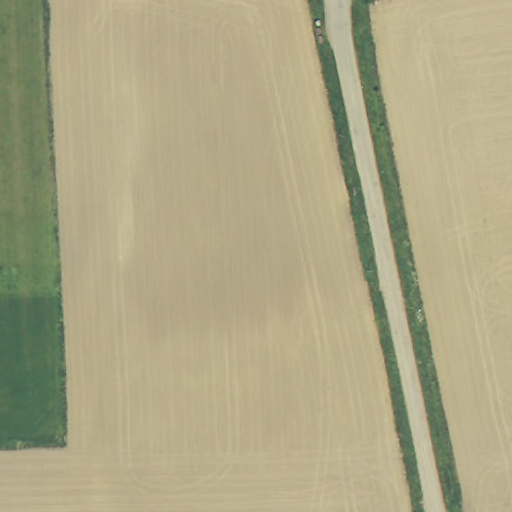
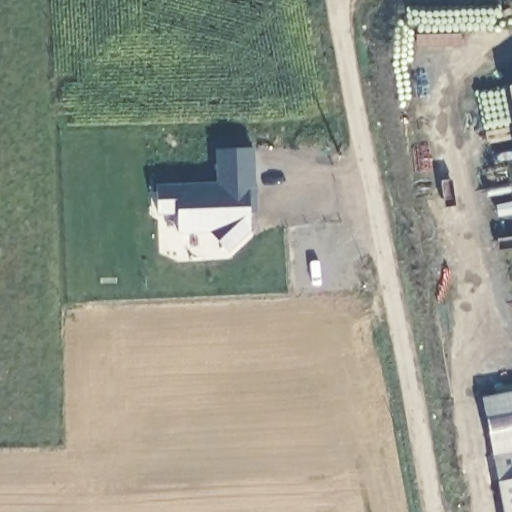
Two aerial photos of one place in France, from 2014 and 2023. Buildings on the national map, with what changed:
new [(508,87),(512,87),(512,106),(508,87)]
new [(256,212),(251,213),(252,230),(229,251),(211,231),(178,235),(179,215),(157,215),(156,184),(218,182),(217,149),(254,147),(256,212)]
new [(481,397),(512,391),(512,512),(504,512),(481,397)]

